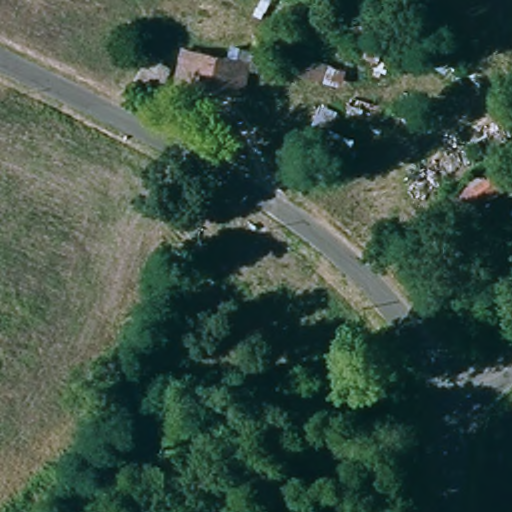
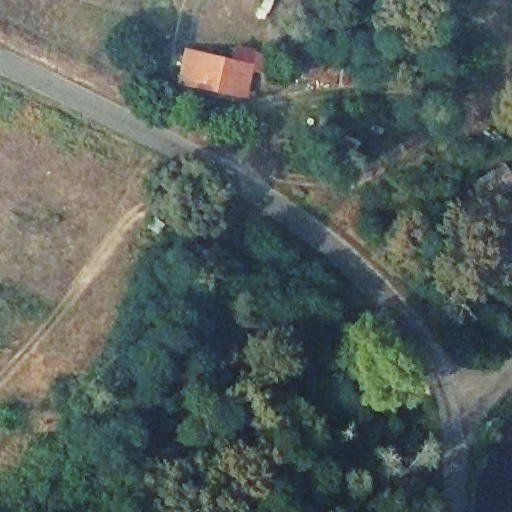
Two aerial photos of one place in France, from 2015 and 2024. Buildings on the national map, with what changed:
unchanged [(185,49),(248,61),(241,99),(177,87),(185,49)]

